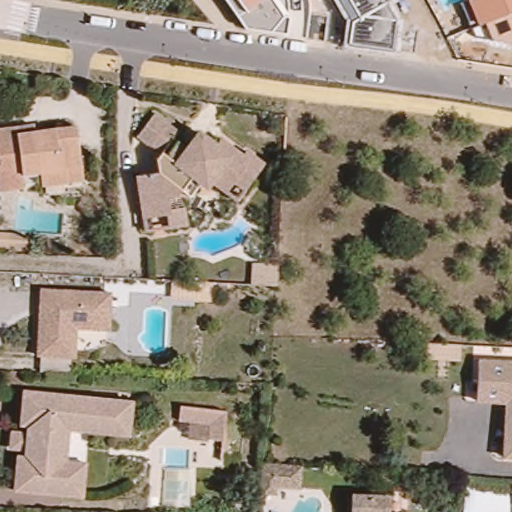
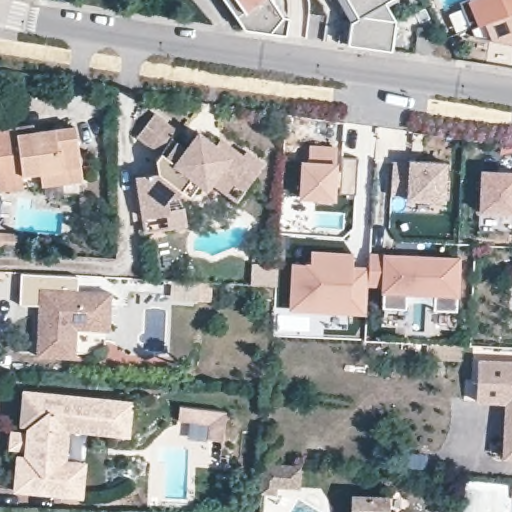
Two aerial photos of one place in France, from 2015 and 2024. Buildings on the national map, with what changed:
unchanged [(286,35),(243,29),(224,0),(280,0),(289,17),(286,35)]
unchanged [(333,0),(390,0),(388,1),(399,19),(397,54),(342,47),(345,19),(333,0)]
unchanged [(512,0),(512,44),(491,40),(485,23),(477,25),(470,0),(471,0),(512,0)]
unchanged [(180,230),(138,237),(137,223),(132,181),(155,177),(153,162),(160,154),(138,139),(155,118),(176,134),(171,140),(187,151),(197,136),(215,149),(219,142),(240,159),(245,153),(263,166),(252,182),(243,193),(232,185),(213,173),(191,175),(174,201),(164,203),(165,219),(178,218),(180,230)]
unchanged [(0,194),(0,136),(37,130),(37,136),(78,131),(83,174),(84,184),(43,189),(41,179),(23,179),(25,191),(0,194)]
new [(335,193),(335,200),(298,198),(301,160),(308,160),(310,145),(336,148),(336,156),(357,159),(355,194),(340,193),(335,193)]
new [(446,162),(443,201),(407,200),(407,197),(391,195),(393,161),(410,161),(446,162)]
new [(480,169),(512,171),(512,212),(479,212),(480,169)]
new [(310,264),(311,250),(353,254),(353,265),(367,267),(366,270),(366,284),(368,284),(364,314),(290,309),(291,264),(310,264)]
new [(367,254),(457,260),(454,312),(430,310),(432,292),(405,290),(403,309),(380,308),(381,285),(366,284),(367,254)]
new [(247,264),(273,265),(272,288),(245,286),(247,264)]
unchanged [(111,289),(110,327),(76,324),(75,354),(37,351),(41,285),(111,289)]
unchanged [(507,404),(477,402),(479,361),(512,363),(512,460),(505,459),(507,404)]
unchanged [(11,491),(15,463),(22,464),(23,449),(16,449),(7,448),(8,433),(18,434),(25,434),(27,421),(21,421),(20,421),(24,391),(71,397),(71,399),(90,399),(132,405),(129,427),(127,439),(86,434),(67,432),(63,463),(82,466),(78,499),(58,497),(11,491)]
unchanged [(217,445),(204,443),(206,429),(188,426),(175,424),(177,410),(190,412),(221,416),(217,445)]
unchanged [(306,458),(305,474),(288,473),(288,484),(273,483),(275,456),(306,458)]
unchanged [(354,499),(390,502),(390,512),(353,512),(354,499)]

